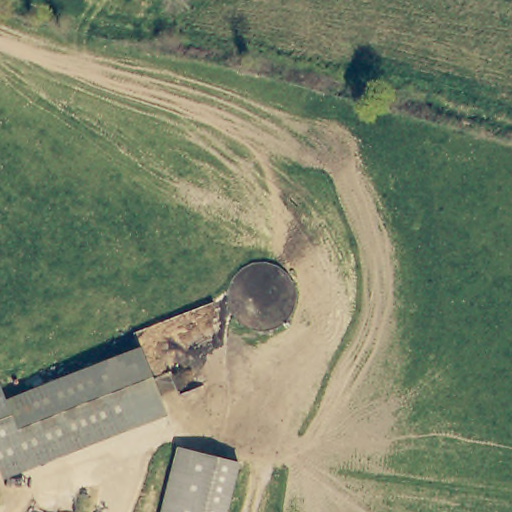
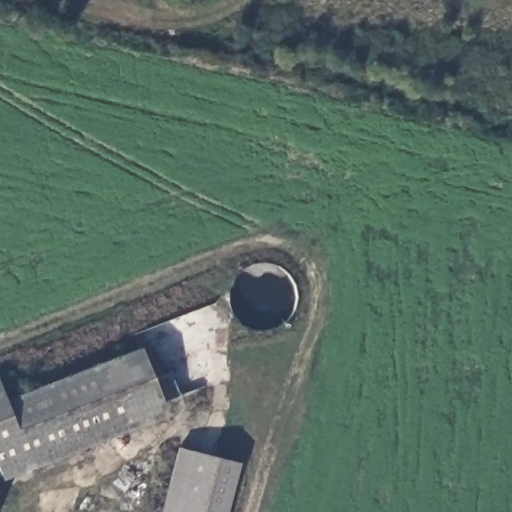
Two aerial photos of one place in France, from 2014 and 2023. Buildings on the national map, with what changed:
unchanged [(24,395),(142,345),(164,397),(20,460),(3,466),(0,460),(0,382),(9,401),(24,395)]
unchanged [(230,512),(167,512),(182,445),(242,457),(230,512)]

